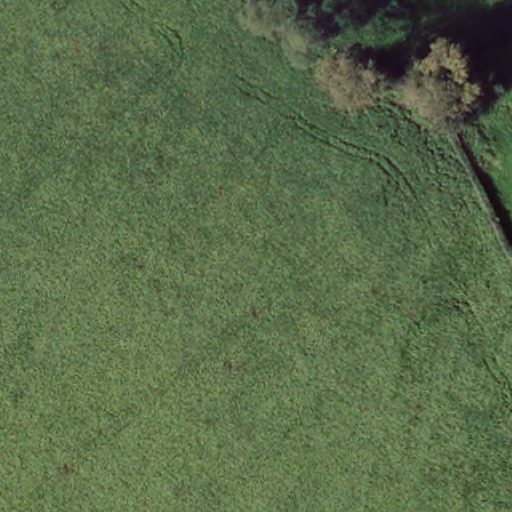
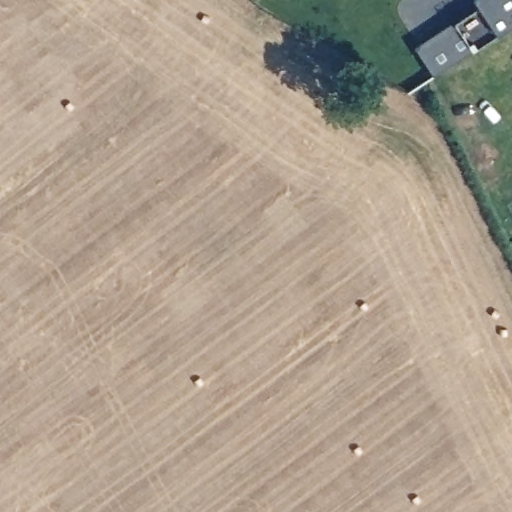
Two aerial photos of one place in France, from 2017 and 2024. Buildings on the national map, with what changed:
new [(502,31),(474,49),(435,74),(416,46),(457,19),(482,4),(479,0),(512,0),(512,24),(502,31)]

